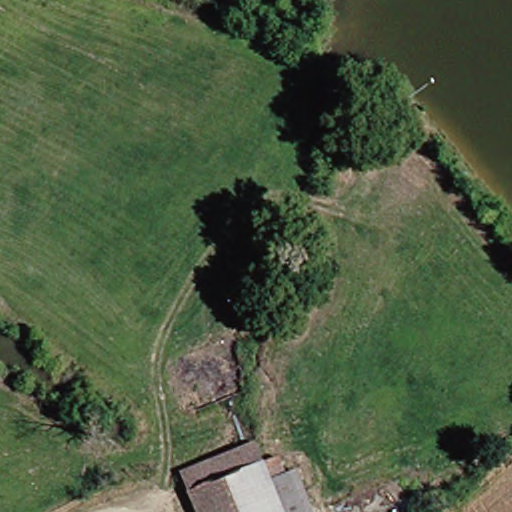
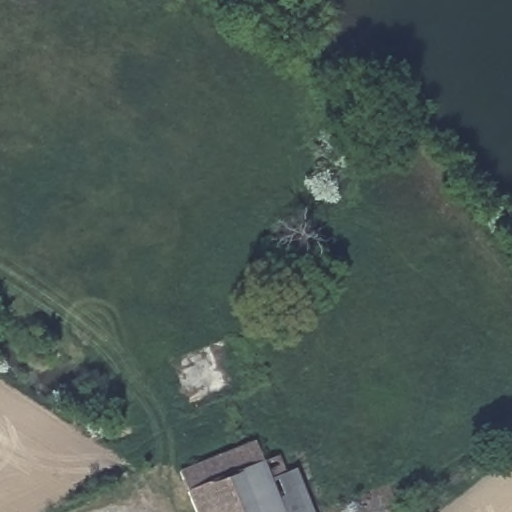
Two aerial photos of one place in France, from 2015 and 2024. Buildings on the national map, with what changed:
unchanged [(267,470),(284,464),(292,486),(279,493),(287,512),(198,512),(183,477),(258,445),(267,470)]
unchanged [(305,482),(318,512),(287,512),(279,493),(292,486),(305,482)]

